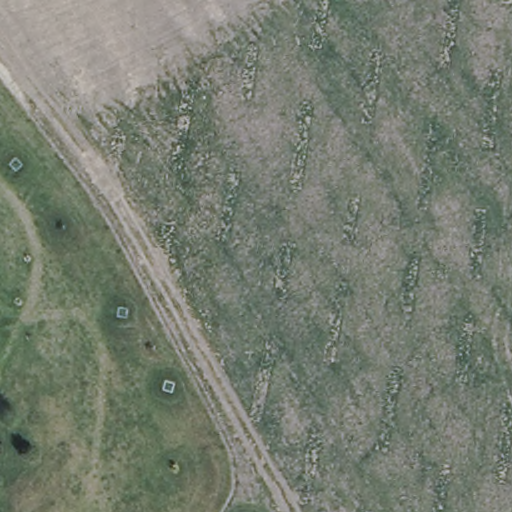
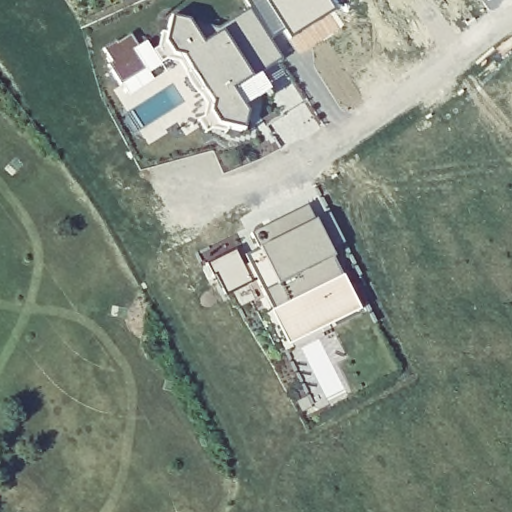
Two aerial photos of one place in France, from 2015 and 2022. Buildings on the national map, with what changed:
new [(338,10),(293,35),(270,0),(332,0),(338,10)]
new [(253,95),(240,104),(246,114),(242,131),(226,128),(225,133),(211,130),(205,134),(196,121),(202,117),(205,105),(200,96),(193,90),(190,85),(185,75),(184,71),(178,62),(166,60),(160,64),(152,51),(157,47),(161,32),(166,34),(170,17),(217,28),(249,8),(282,60),(255,77),(257,80),(253,95)]
new [(138,47),(132,51),(145,70),(121,85),(109,65),(112,62),(104,49),(116,41),(117,43),(130,35),(138,47)]
new [(258,249),(250,234),(273,222),(307,206),(315,221),(329,214),(343,244),(329,251),(350,292),(345,295),(353,311),(333,321),(327,308),(302,321),(293,304),(273,314),(272,312),(257,281),(270,275),(258,249)]
new [(272,312),(273,314),(293,304),(302,321),(327,308),(333,321),(353,311),(345,295),(350,292),(358,311),(287,346),(270,312),(272,312)]

